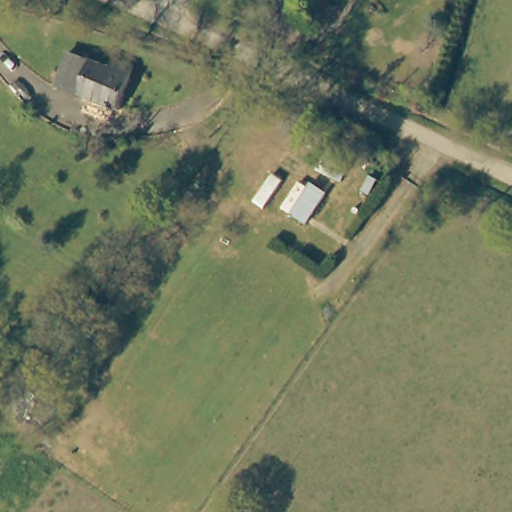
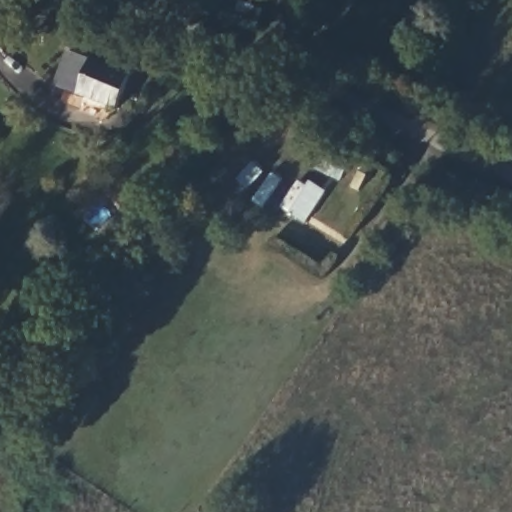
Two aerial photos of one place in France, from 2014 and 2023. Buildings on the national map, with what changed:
unchanged [(64,54),(105,69),(108,60),(128,67),(112,110),(51,87),(64,54)]
unchanged [(179,137),(180,133),(182,129),(186,127),(190,126),(194,127),(198,130),(200,133),(200,138),(199,142),(197,145),(193,147),(189,147),(180,141),(179,137)]

